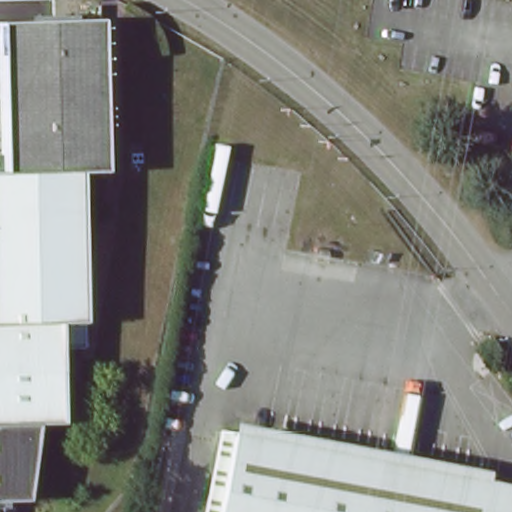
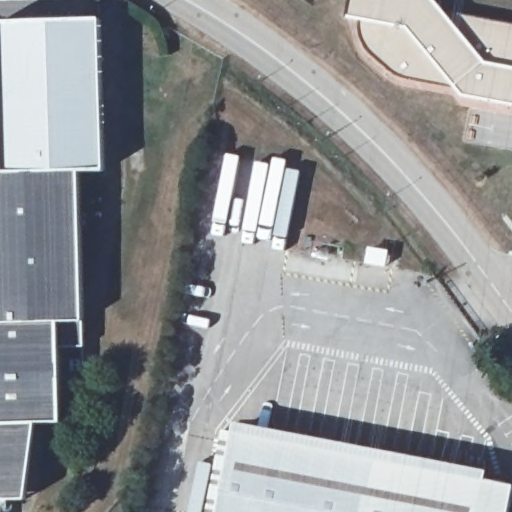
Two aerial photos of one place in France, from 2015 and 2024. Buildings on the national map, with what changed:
new [(445,14),(512,25),(512,106),(461,97),(453,87),(408,79),(395,74),(385,67),(369,53),(363,45),(359,30),(359,20),(346,18),(349,0),(434,0),(445,14)]
unchanged [(0,22),(100,20),(105,170),(79,170),(84,346),(58,346),(61,420),(36,420),(0,422),(0,173),(4,172),(3,155),(0,39),(0,22)]
unchanged [(0,422),(36,420),(33,453),(27,497),(3,498),(1,454),(0,422)]
unchanged [(0,454),(0,422),(1,454),(0,454)]
unchanged [(510,512),(208,512),(223,430),(512,486),(512,500),(510,512)]
unchanged [(0,454),(1,454),(3,498),(0,498),(0,454)]

